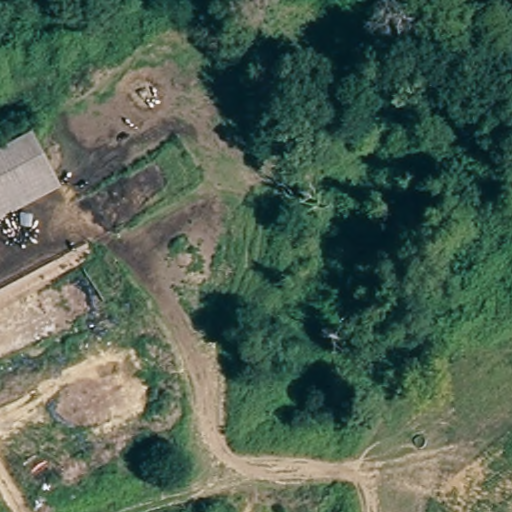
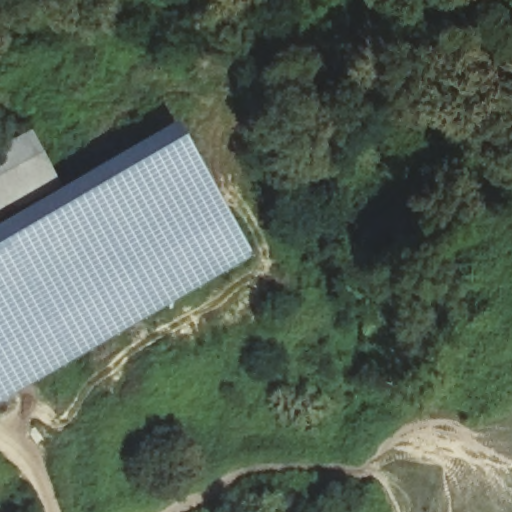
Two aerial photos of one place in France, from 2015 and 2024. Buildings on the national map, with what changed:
new [(0,405),(0,228),(175,127),(253,260),(0,405)]
new [(61,189),(0,220),(0,150),(33,132),(61,189)]

